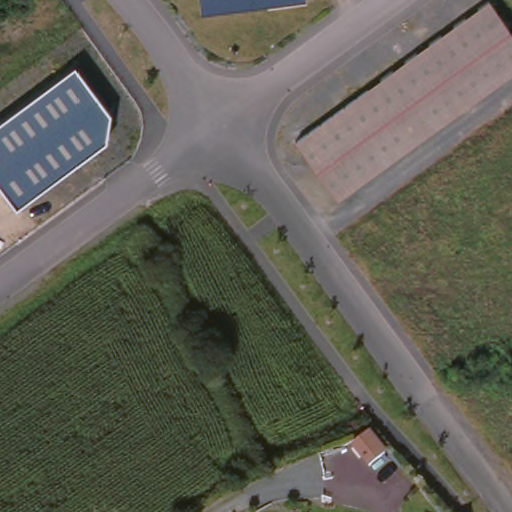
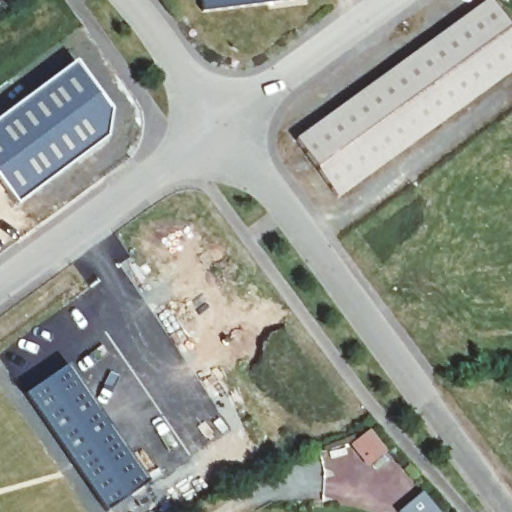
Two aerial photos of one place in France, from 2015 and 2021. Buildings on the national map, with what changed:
unchanged [(205,0),(284,0),(207,13),(205,0)]
unchanged [(494,0),(512,25),(512,71),(344,192),(302,133),(487,0),(494,0)]
unchanged [(70,60),(105,109),(101,136),(11,202),(0,187),(0,110),(70,60)]
new [(71,364),(149,484),(106,512),(105,512),(27,393),(71,364)]
new [(357,440),(376,461),(359,476),(340,454),(357,440)]

